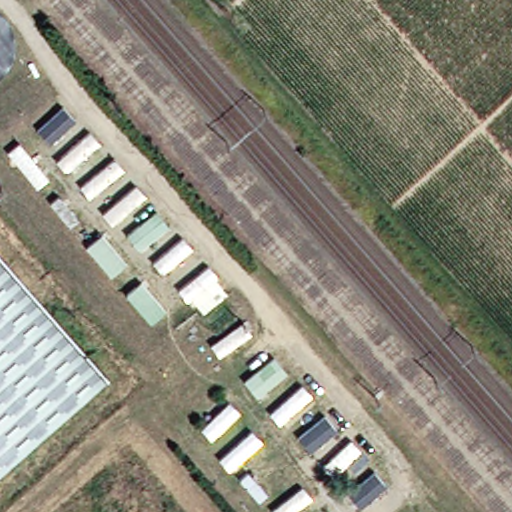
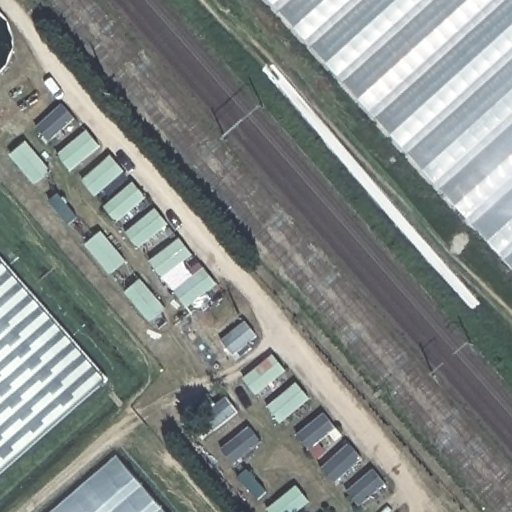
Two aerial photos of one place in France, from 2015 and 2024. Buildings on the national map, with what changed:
new [(512,0),(512,267),(271,0),(512,0)]
unchanged [(0,461),(0,270),(95,378),(0,461)]
new [(117,456),(166,512),(52,512),(117,456)]

